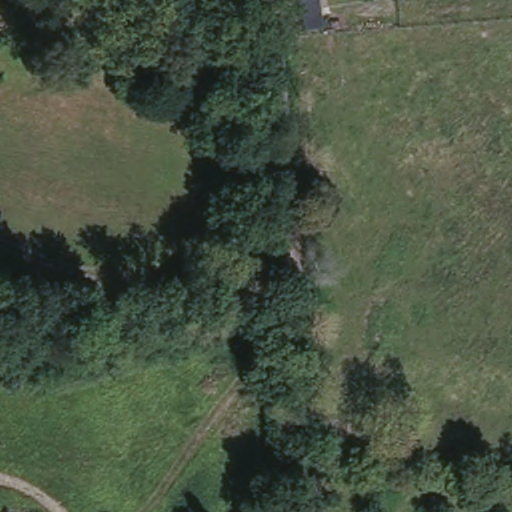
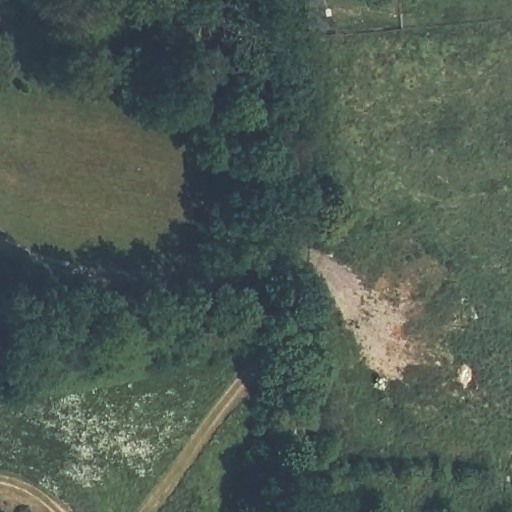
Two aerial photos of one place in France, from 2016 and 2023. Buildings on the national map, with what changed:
unchanged [(308,30),(302,0),(323,0),(330,22),(308,30)]

